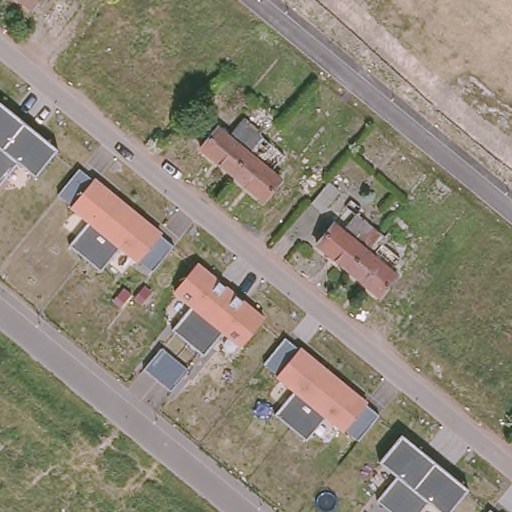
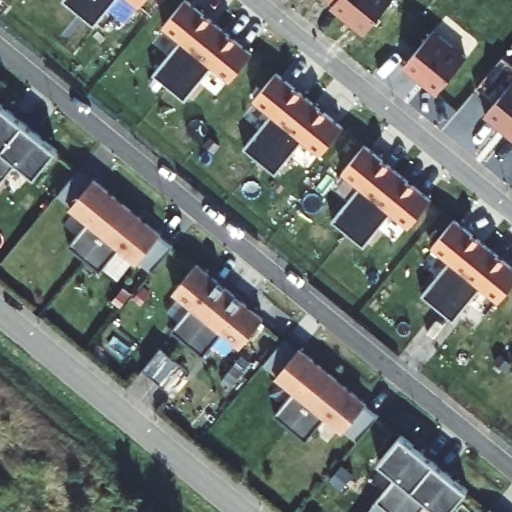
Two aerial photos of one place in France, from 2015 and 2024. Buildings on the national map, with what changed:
demolished [(35,0),(25,13),(9,0),(35,0)]
new [(65,4),(67,0),(116,0),(92,27),(65,4)]
demolished [(82,5),(86,0),(102,0),(92,12),(82,5)]
new [(122,0),(149,0),(140,10),(122,0)]
new [(210,70),(182,101),(153,79),(180,45),(161,30),(183,0),(185,0),(254,59),(230,86),(210,70)]
new [(325,11),(331,4),(325,0),(394,0),(399,4),(367,44),(325,11)]
new [(404,67),(434,31),(467,59),(437,94),(404,67)]
new [(322,161),(300,144),(275,176),(244,154),(270,121),(250,106),(275,75),(345,132),(322,161)]
new [(482,120),(512,84),(512,144),(482,120)]
unchanged [(33,176),(17,164),(0,180),(0,103),(57,147),(33,176)]
demolished [(223,179),(192,154),(210,132),(235,154),(248,137),(254,141),(223,179)]
demolished [(223,179),(254,141),(260,146),(247,162),(270,182),(254,204),(223,179)]
new [(410,235),(389,215),(365,247),(335,224),(360,194),(342,180),(364,146),(435,206),(410,235)]
unchanged [(91,179),(171,244),(147,272),(115,247),(97,270),(67,246),(87,223),(66,206),(91,179)]
new [(501,306),(478,290),(452,325),(422,299),(449,267),(427,250),(454,221),(512,270),(512,294),(501,306)]
demolished [(339,275),(309,249),(326,228),(351,249),(364,232),(370,237),(339,275)]
demolished [(339,275),(370,237),(375,242),(362,258),(387,278),(370,300),(339,275)]
unchanged [(194,262),(262,316),(236,347),(217,333),(202,353),(172,328),(188,310),(167,293),(194,262)]
unchanged [(158,340),(192,365),(172,390),(139,366),(158,340)]
unchanged [(352,441),(322,416),(303,438),(275,414),(293,392),(273,376),(297,349),(375,413),(352,441)]
unchanged [(464,490),(446,512),(432,512),(422,503),(415,512),(389,512),(375,500),(394,480),(375,465),(400,434),(464,490)]

